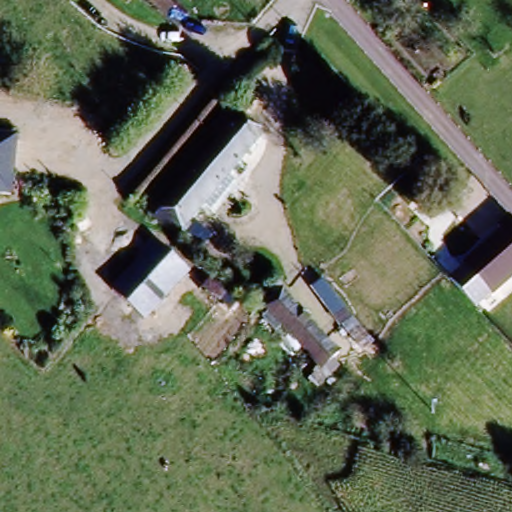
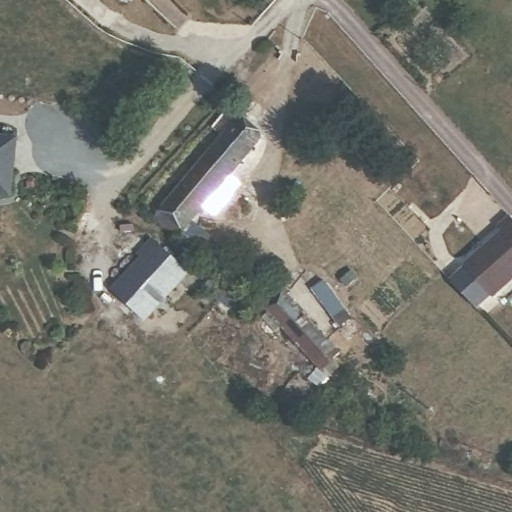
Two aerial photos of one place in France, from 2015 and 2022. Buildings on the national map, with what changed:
unchanged [(187,226),(160,204),(231,112),(259,135),(187,226)]
unchanged [(0,197),(0,132),(25,135),(15,199),(0,197)]
unchanged [(488,297),(460,265),(496,230),(492,226),(505,214),(512,222),(512,274),(488,297)]
unchanged [(121,286),(152,245),(184,269),(151,311),(121,286)]
unchanged [(338,353),(322,369),(258,307),(274,291),(338,353)]

